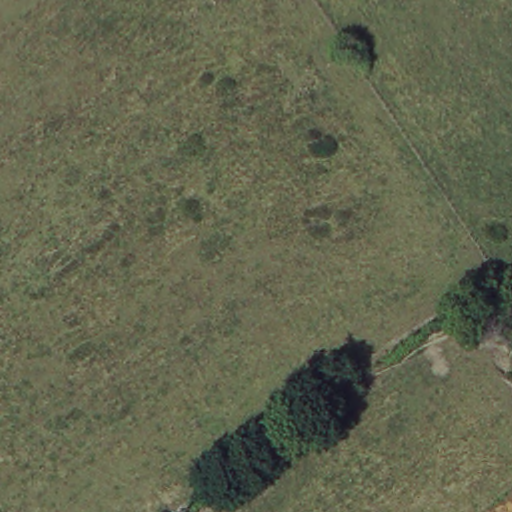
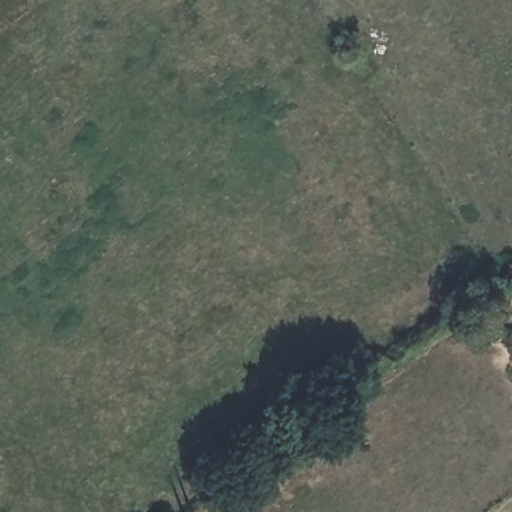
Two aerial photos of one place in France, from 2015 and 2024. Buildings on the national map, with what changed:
[]

